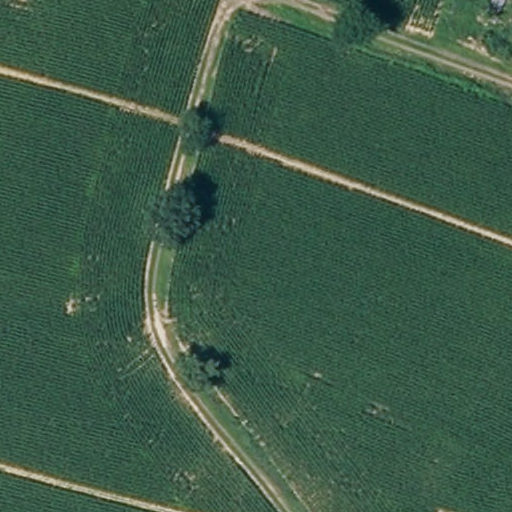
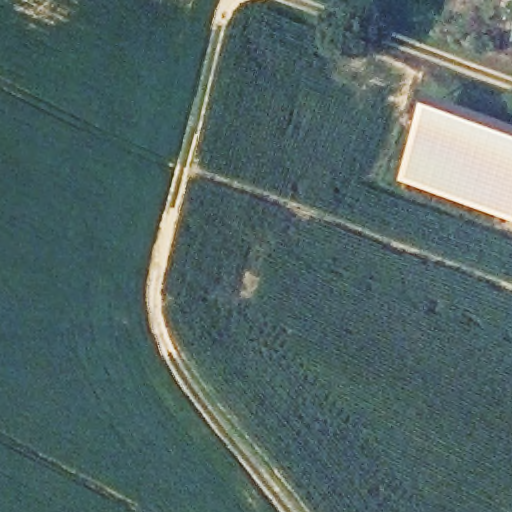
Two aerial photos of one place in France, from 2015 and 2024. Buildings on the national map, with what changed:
new [(432,103),(512,131),(512,224),(404,186),(432,103)]

